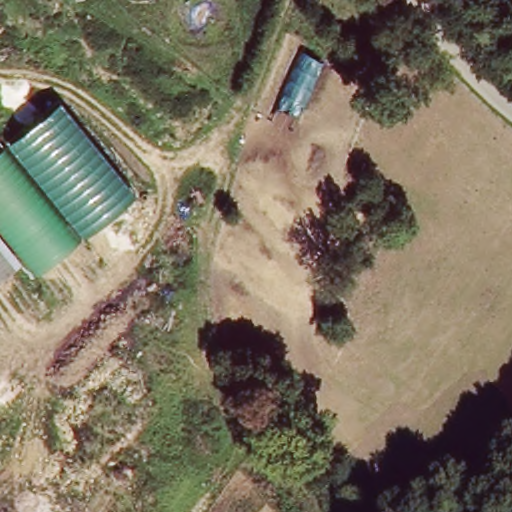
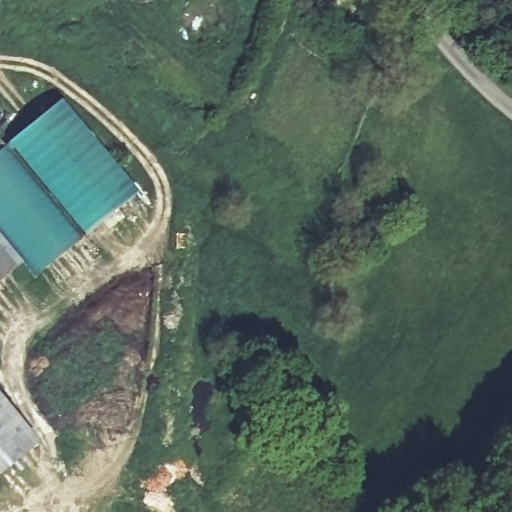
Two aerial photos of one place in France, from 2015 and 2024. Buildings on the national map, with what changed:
unchanged [(135,196),(82,240),(10,144),(60,103),(135,196)]
unchanged [(0,232),(0,151),(10,144),(82,240),(35,277),(22,260),(0,232)]
unchanged [(22,260),(0,276),(0,232),(22,260)]
new [(0,474),(0,398),(37,444),(0,474)]

